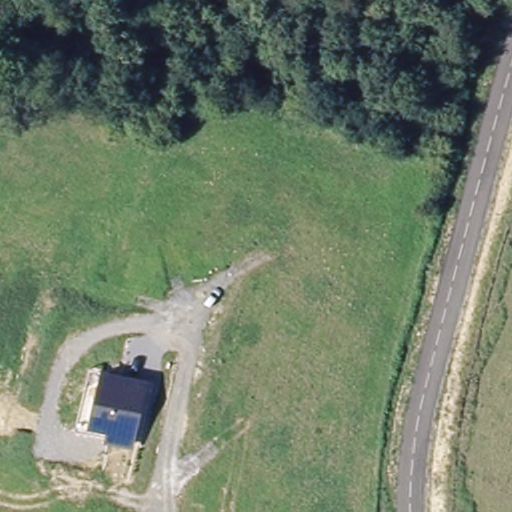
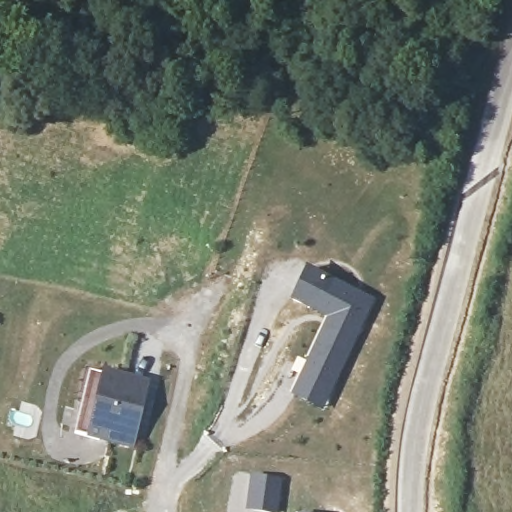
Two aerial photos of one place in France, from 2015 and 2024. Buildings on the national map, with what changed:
new [(312,358),(315,358),(333,318),(307,306),(294,300),(307,272),(321,279),(370,301),(326,397),(299,385),(312,358)]
unchanged [(151,382),(135,452),(104,445),(74,435),(91,369),(100,370),(151,382)]
new [(282,479),(277,512),(266,512),(245,510),(250,476),(282,479)]

